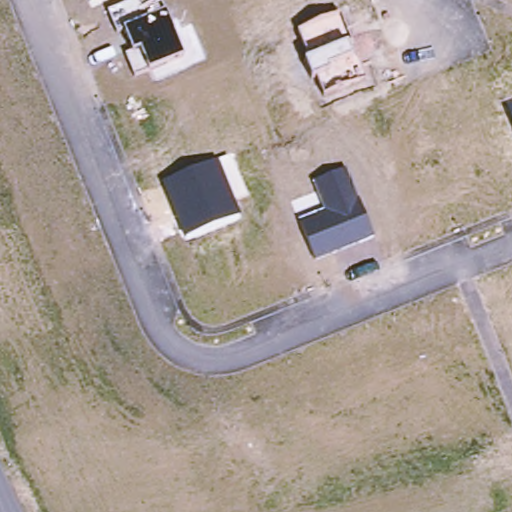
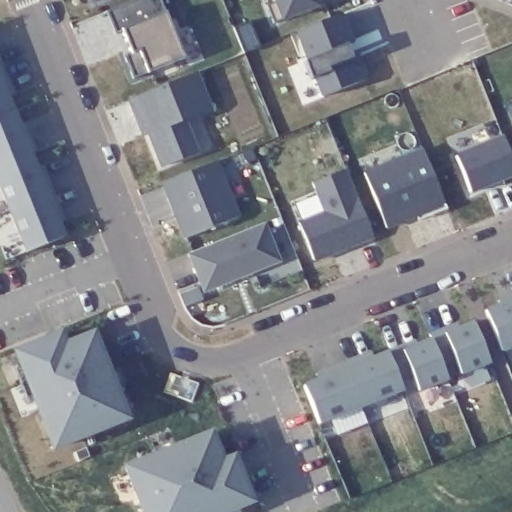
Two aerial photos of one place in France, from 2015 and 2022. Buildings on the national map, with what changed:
unchanged [(100,0),(97,1),(92,3),(91,0),(100,0)]
unchanged [(162,0),(186,58),(136,78),(127,56),(134,52),(125,31),(118,34),(110,12),(139,0),(162,0)]
new [(321,7),(282,23),(280,17),(275,24),(269,7),(273,0),(326,0),(318,2),(321,7)]
unchanged [(343,15),(355,44),(350,46),(355,58),(360,56),(369,80),(326,97),(318,79),(314,80),(307,62),(312,61),(300,32),(343,15)]
new [(5,72),(0,75),(0,59),(5,72)]
new [(12,87),(17,100),(11,102),(17,117),(0,124),(0,75),(5,72),(12,87)]
new [(212,110),(187,121),(200,154),(161,168),(148,134),(143,136),(130,99),(197,72),(212,110)]
new [(22,131),(28,129),(33,142),(40,157),(34,159),(0,172),(0,124),(17,117),(22,131)]
new [(512,180),(472,196),(455,156),(503,137),(512,158),(512,180)]
new [(420,221),(390,232),(367,177),(426,154),(450,214),(434,220),(422,225),(420,221)]
unchanged [(218,157),(241,212),(188,234),(180,215),(185,213),(182,206),(178,207),(166,178),(190,169),(218,157)]
new [(40,173),(45,171),(50,184),(57,198),(13,216),(0,184),(0,172),(34,159),(40,173)]
unchanged [(350,170),(377,237),(318,261),(303,224),(328,213),(316,183),(350,170)]
unchanged [(62,213),(67,226),(62,228),(67,243),(30,258),(13,216),(57,198),(62,213)]
new [(282,261),(204,293),(188,254),(265,223),(282,261)]
new [(512,306),(512,353),(505,356),(488,315),(503,310),(512,306)]
new [(461,328),(462,332),(477,327),(493,367),(464,378),(458,364),(445,370),(435,343),(433,340),(447,334),(461,328)]
new [(63,340),(67,352),(96,340),(130,424),(57,453),(18,357),(63,340)]
new [(419,346),(420,350),(435,343),(445,370),(451,383),(422,396),(417,381),(403,386),(392,357),(405,351),(419,346)]
new [(375,357),(377,362),(392,357),(403,386),(407,394),(365,411),(347,367),(362,362),(375,357)]
new [(320,378),(332,373),(347,367),(365,411),(322,428),(307,391),(322,385),(320,378)]
new [(214,439),(225,467),(237,462),(255,507),(243,512),(145,512),(130,473),(214,439)]

